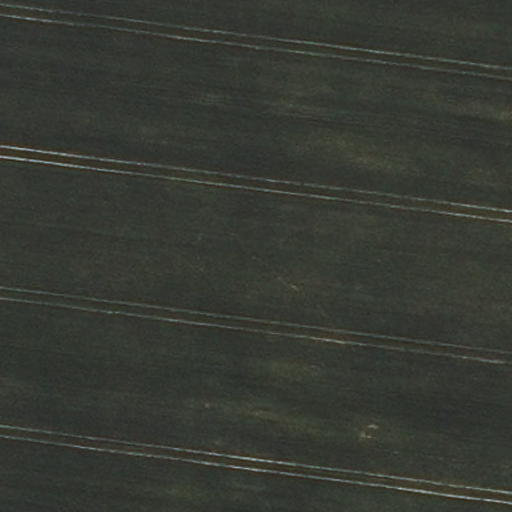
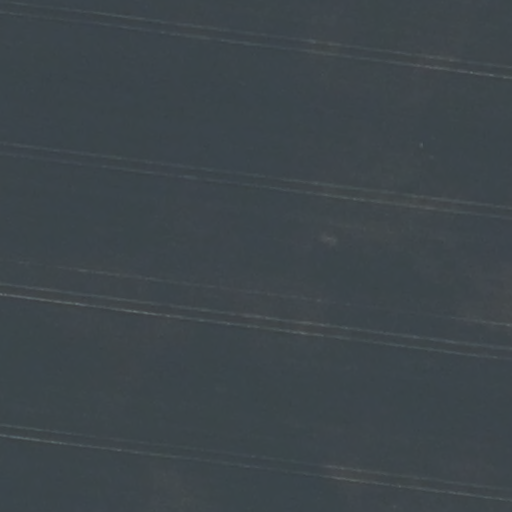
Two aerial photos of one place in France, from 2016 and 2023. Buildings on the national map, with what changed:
[]

